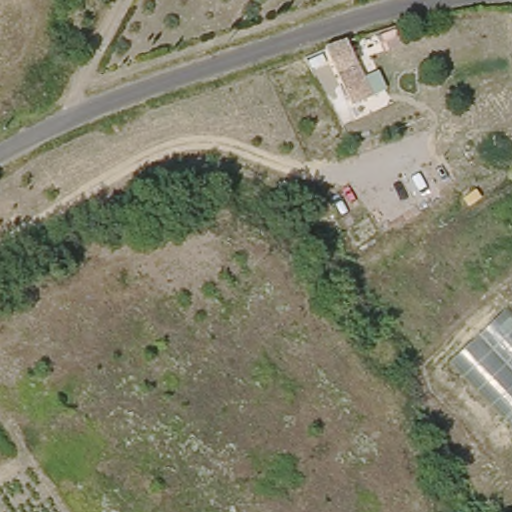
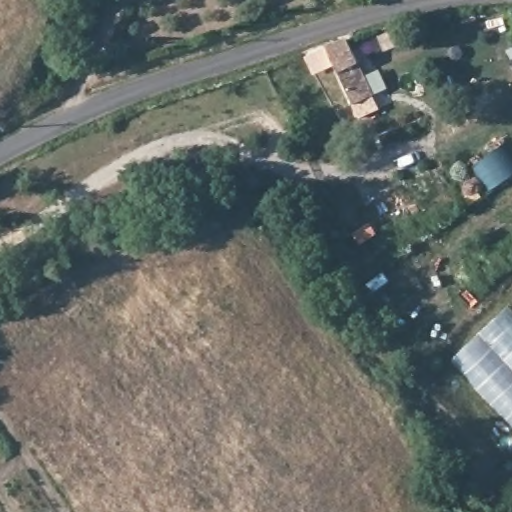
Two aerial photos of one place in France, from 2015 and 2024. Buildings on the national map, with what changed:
unchanged [(352,52),(363,80),(339,88),(328,59),(352,52)]
unchanged [(509,307),(512,311),(512,423),(453,358),(509,307)]

